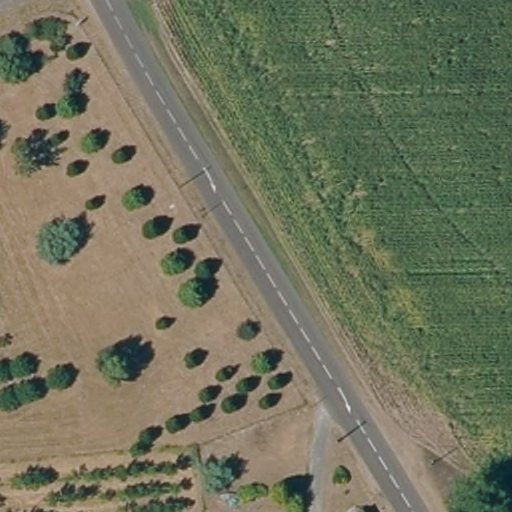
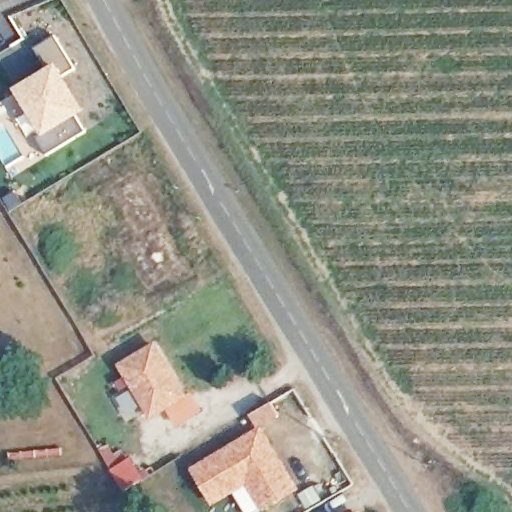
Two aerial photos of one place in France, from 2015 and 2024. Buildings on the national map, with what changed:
new [(79,118),(87,133),(49,155),(38,137),(42,131),(18,90),(51,70),(39,49),(57,38),(76,70),(65,73),(88,113),(79,118)]
new [(152,420),(119,365),(157,343),(190,398),(152,420)]
new [(265,512),(248,486),(213,507),(191,468),(262,426),(301,491),(265,512)]

